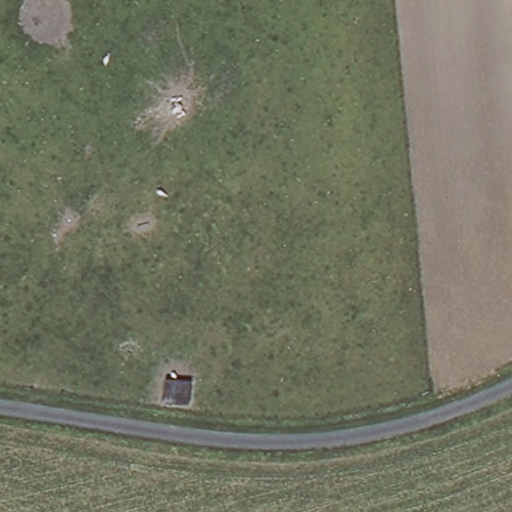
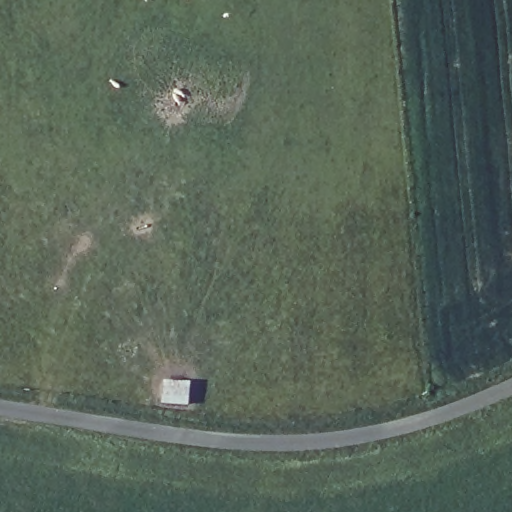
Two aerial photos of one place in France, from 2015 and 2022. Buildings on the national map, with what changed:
unchanged [(160,380),(185,382),(184,404),(158,402),(160,380)]

